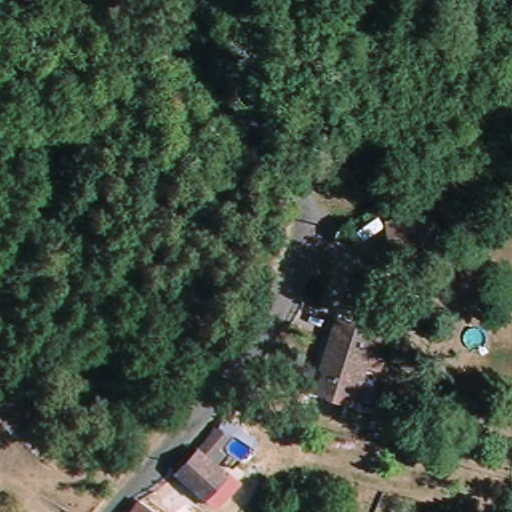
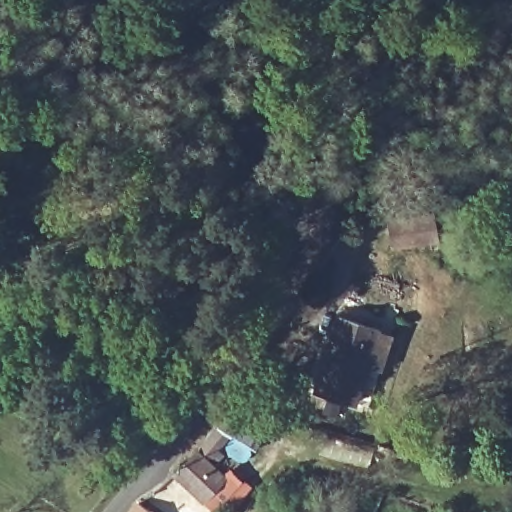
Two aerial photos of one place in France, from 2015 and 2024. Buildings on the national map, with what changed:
unchanged [(394,247),(390,220),(438,214),(442,241),(394,247)]
unchanged [(382,363),(369,358),(353,401),(316,389),(341,312),(394,330),(382,363)]
unchanged [(209,470),(223,482),(231,471),(250,486),(226,512),(216,512),(177,480),(221,423),(237,434),(209,470)]
unchanged [(132,512),(140,503),(153,512),(132,512)]

